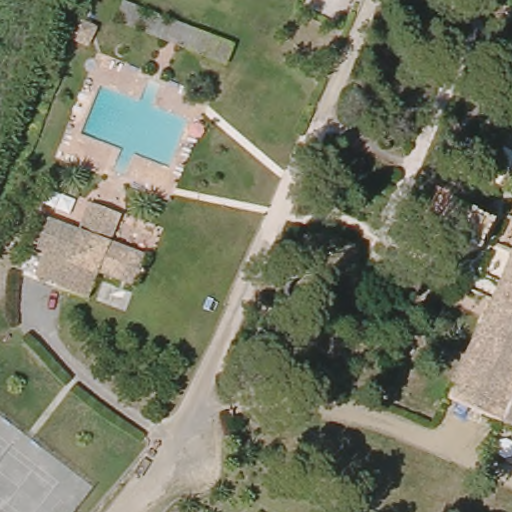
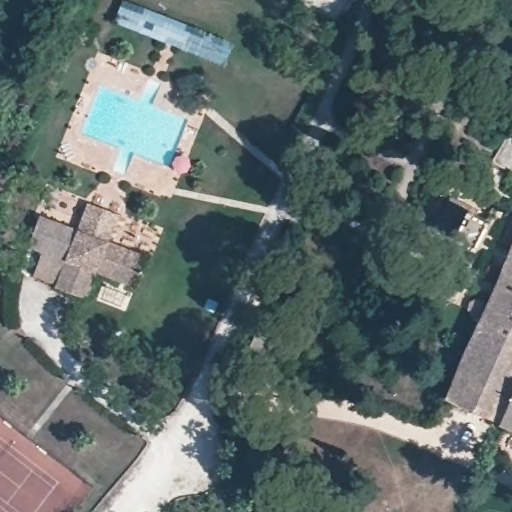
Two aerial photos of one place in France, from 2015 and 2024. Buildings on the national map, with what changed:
unchanged [(221,66),(110,24),(120,3),(232,44),(221,66)]
unchanged [(45,254),(28,249),(40,216),(76,228),(85,201),(116,212),(108,239),(146,253),(136,286),(96,272),(88,298),(36,280),(45,254)]
unchanged [(489,213),(477,240),(454,230),(466,202),(489,213)]
unchanged [(445,392),(512,240),(512,422),(445,392)]

